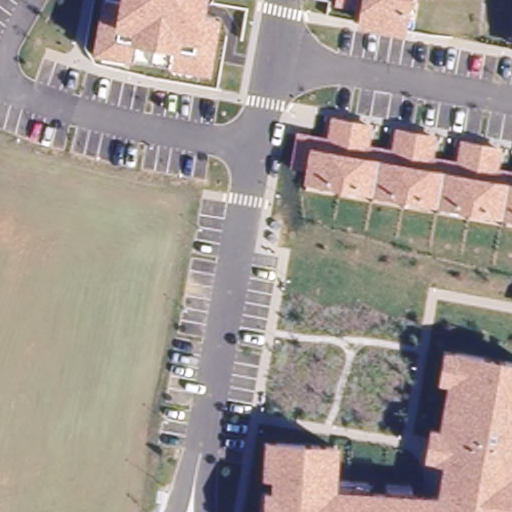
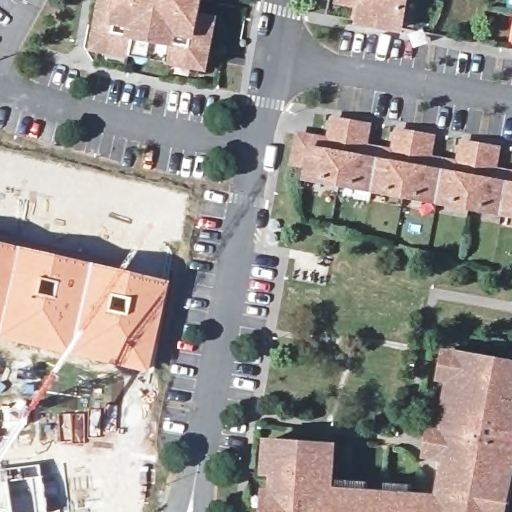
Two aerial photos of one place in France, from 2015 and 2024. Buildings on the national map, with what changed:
unchanged [(203,13),(218,15),(209,71),(168,64),(169,58),(133,52),(133,55),(93,48),(100,11),(116,14),(119,0),(205,0),(203,13)]
unchanged [(403,36),(355,27),(358,8),(334,3),(335,0),(410,0),(403,36)]
unchanged [(369,142),(392,146),(395,123),(436,131),(432,154),(456,158),(460,138),(503,146),(500,165),(512,167),(512,217),(324,186),(301,181),(303,165),(292,163),(298,129),(326,135),(331,115),(373,121),(369,142)]
new [(166,279),(145,373),(84,361),(54,351),(53,354),(0,341),(0,241),(166,279)]
unchanged [(512,500),(510,512),(261,512),(262,484),(270,485),(271,475),(262,474),(265,439),(339,444),(337,485),(437,493),(442,461),(423,457),(429,423),(440,424),(445,383),(437,381),(443,348),(512,360),(512,500)]

